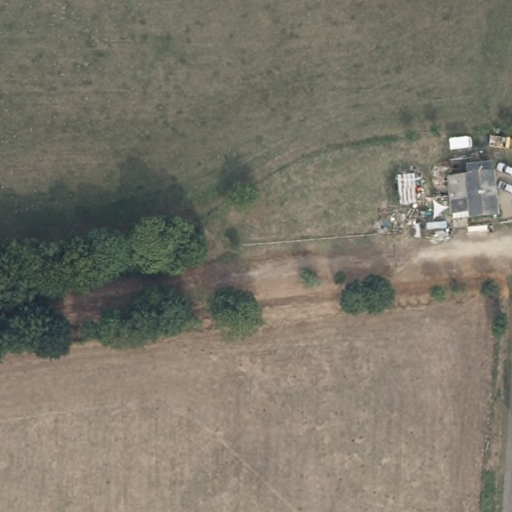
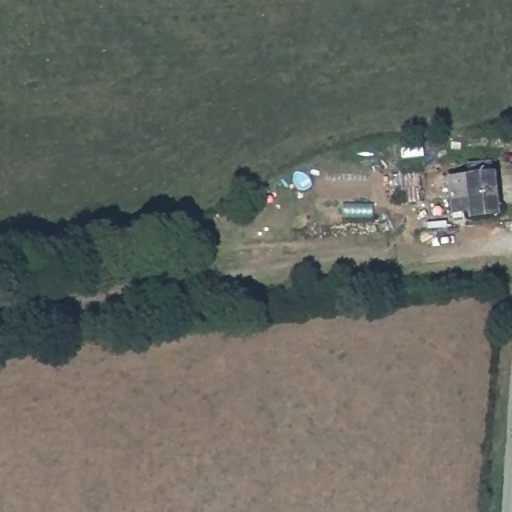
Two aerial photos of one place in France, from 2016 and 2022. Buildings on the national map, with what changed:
unchanged [(460,216),(455,216),(450,172),(459,171),(458,165),(490,161),(490,164),(491,164),(495,212),(460,216)]
unchanged [(416,176),(417,204),(397,204),(397,176),(416,176)]

